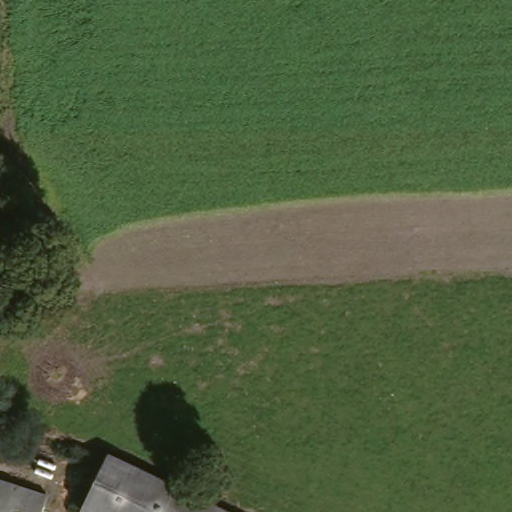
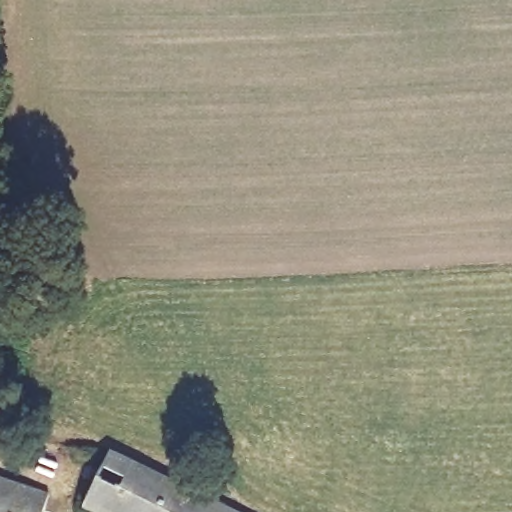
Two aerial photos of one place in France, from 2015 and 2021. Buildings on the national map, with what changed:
unchanged [(232,512),(85,512),(114,455),(232,512)]
unchanged [(43,512),(0,512),(0,479),(49,496),(43,512)]

